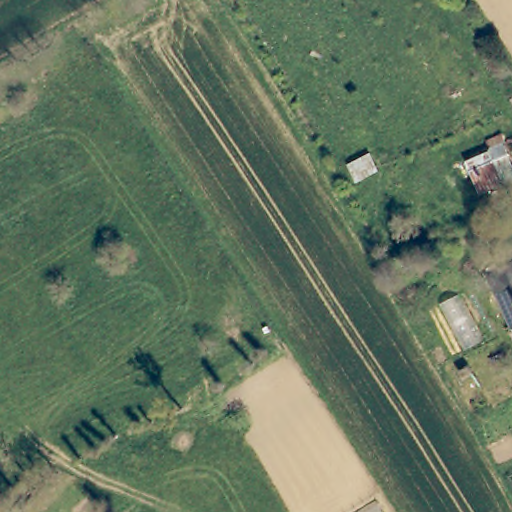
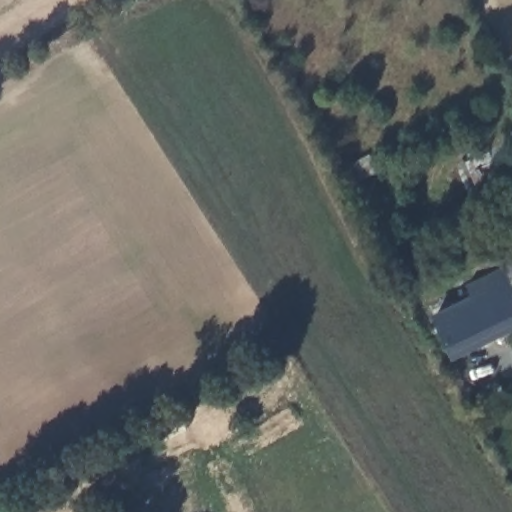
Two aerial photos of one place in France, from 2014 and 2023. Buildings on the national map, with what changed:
unchanged [(510,269),(512,267),(512,273),(510,269)]
unchanged [(490,279),(510,269),(512,273),(512,322),(490,279)]
new [(454,361),(431,316),(471,296),(468,290),(490,279),(512,322),(512,332),(454,361)]
unchanged [(86,510),(89,512),(84,512),(86,510)]

